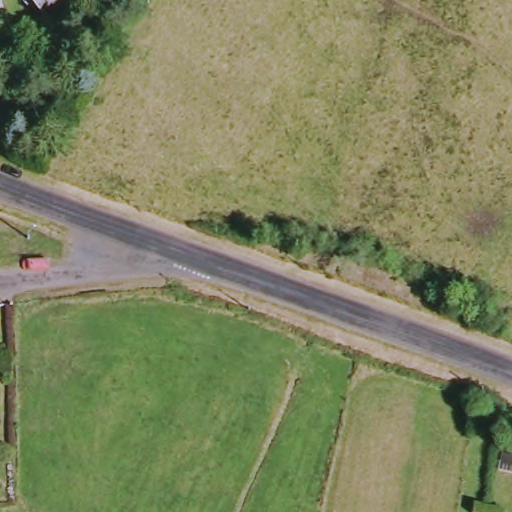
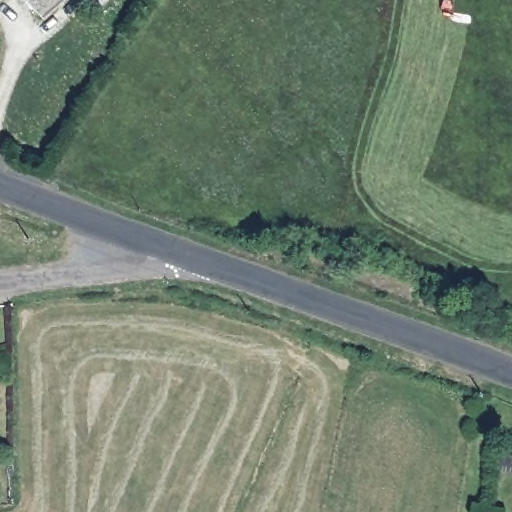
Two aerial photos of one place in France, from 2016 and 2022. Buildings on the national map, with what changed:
unchanged [(41,0),(70,0),(55,14),(41,0)]

